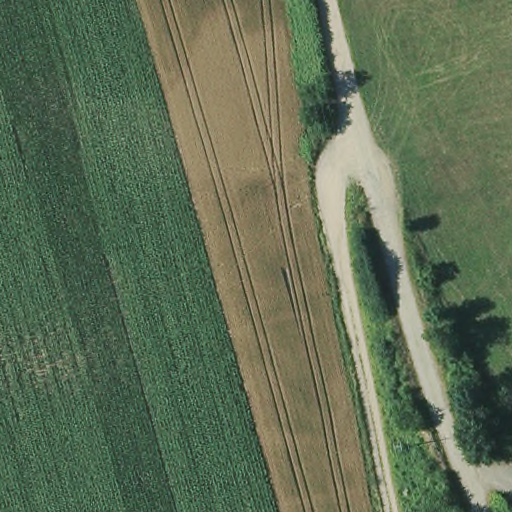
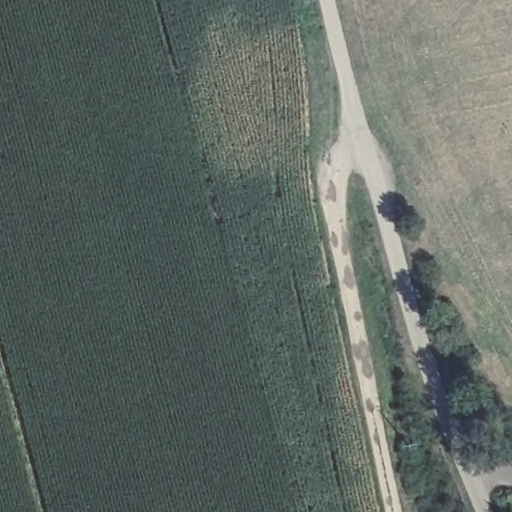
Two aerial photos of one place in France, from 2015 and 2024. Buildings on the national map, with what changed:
[]

